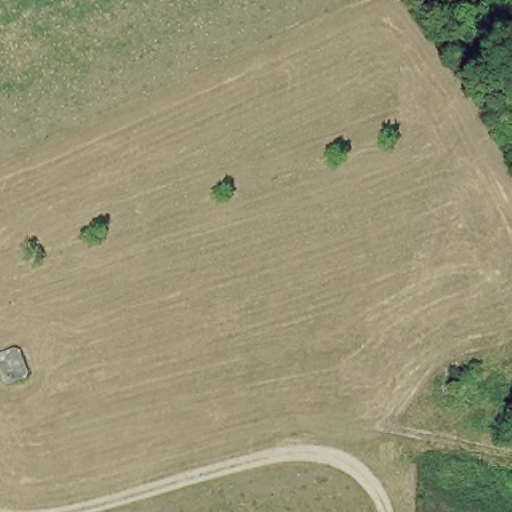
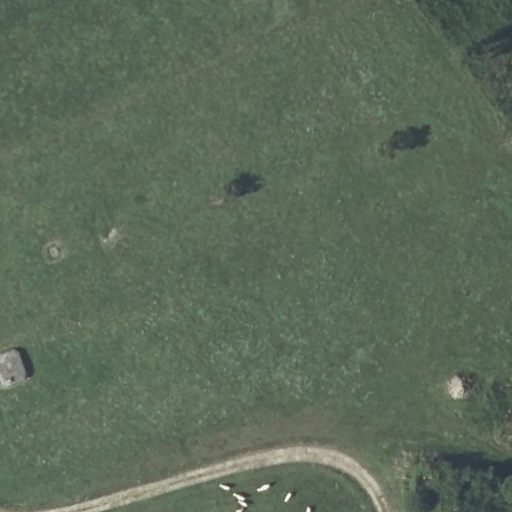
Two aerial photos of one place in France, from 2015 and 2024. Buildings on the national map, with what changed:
unchanged [(18,378),(0,386),(0,354),(10,350),(18,378)]

